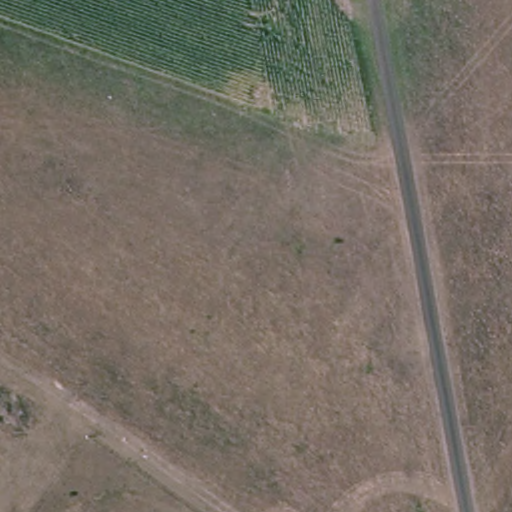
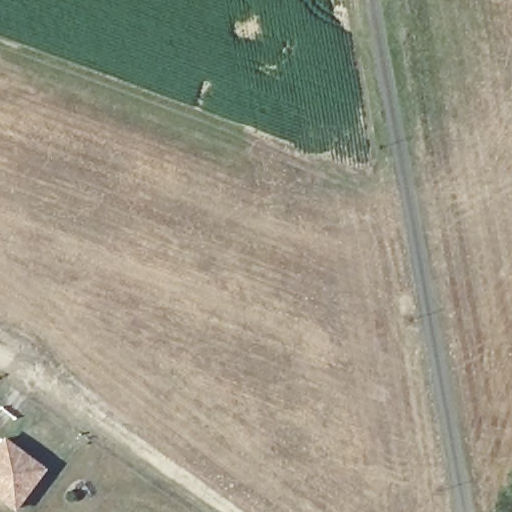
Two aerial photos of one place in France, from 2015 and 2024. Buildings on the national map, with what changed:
new [(2,437),(45,470),(14,512),(13,512),(0,503),(0,440),(2,437)]

